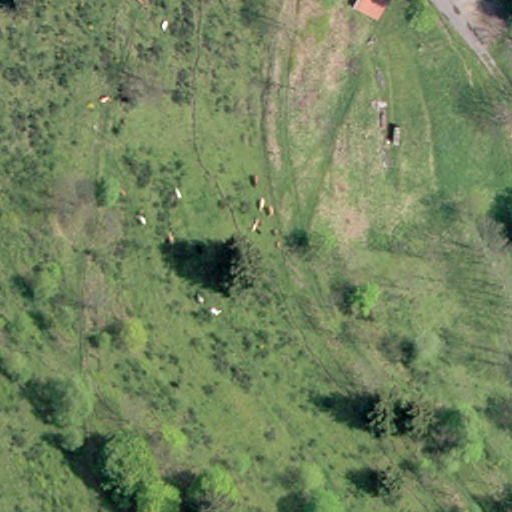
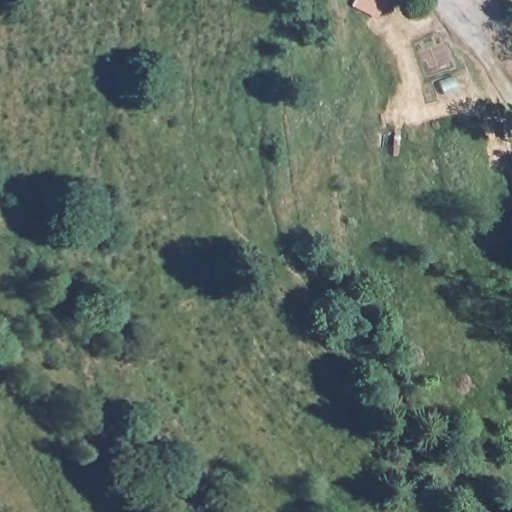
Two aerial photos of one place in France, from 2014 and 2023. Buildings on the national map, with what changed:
unchanged [(338,2),(339,0),(358,0),(352,11),(338,2)]

